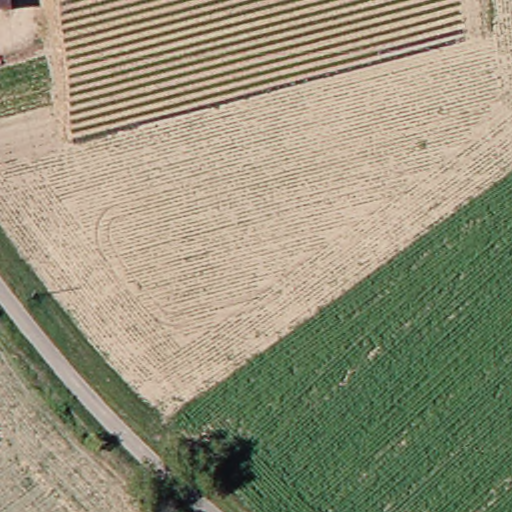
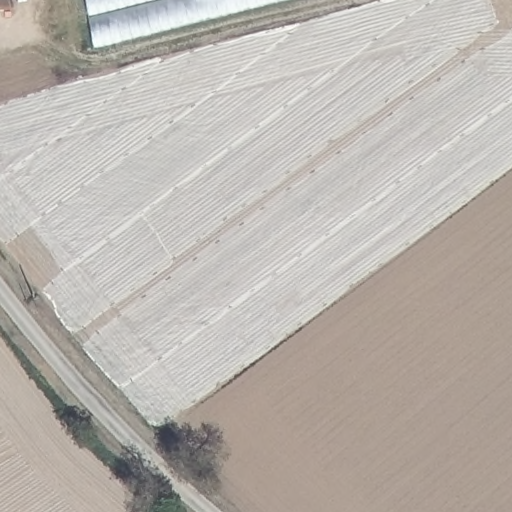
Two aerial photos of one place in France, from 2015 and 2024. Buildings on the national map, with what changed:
unchanged [(0,11),(0,0),(11,0),(12,10),(0,11)]
new [(95,47),(86,0),(289,0),(95,47)]

